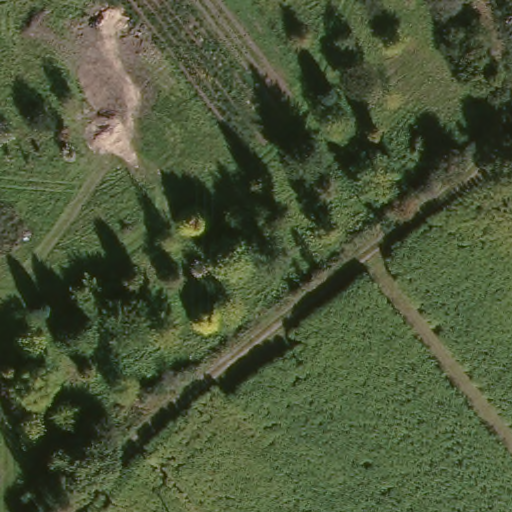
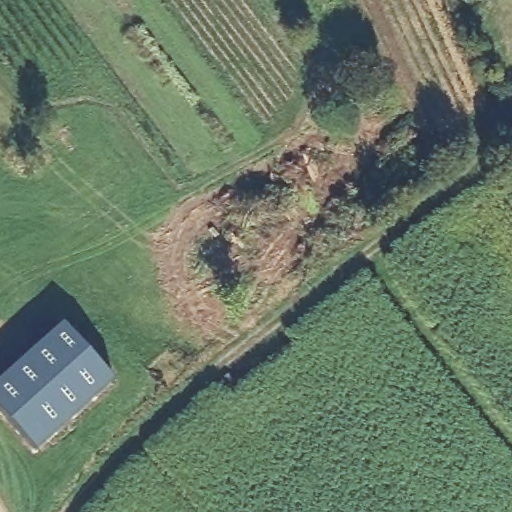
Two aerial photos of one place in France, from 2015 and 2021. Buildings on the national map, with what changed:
new [(65,320),(114,377),(35,446),(0,406),(0,378),(65,320)]

